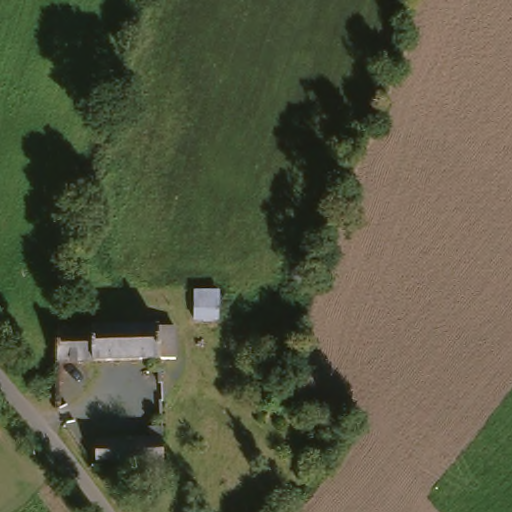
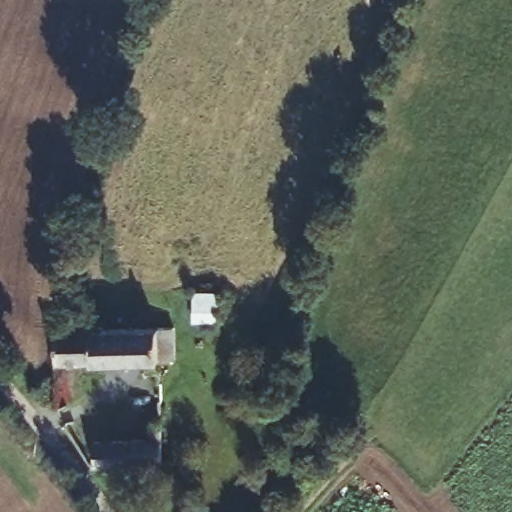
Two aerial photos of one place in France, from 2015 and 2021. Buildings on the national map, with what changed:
unchanged [(229,288),(229,317),(204,316),(204,288),(229,288)]
unchanged [(169,323),(184,323),(185,355),(169,355),(67,358),(68,326),(169,323)]
unchanged [(101,466),(100,441),(154,440),(154,429),(167,428),(168,439),(169,464),(101,466)]

